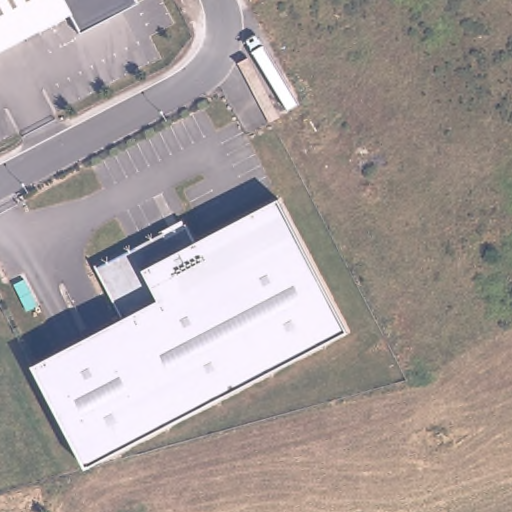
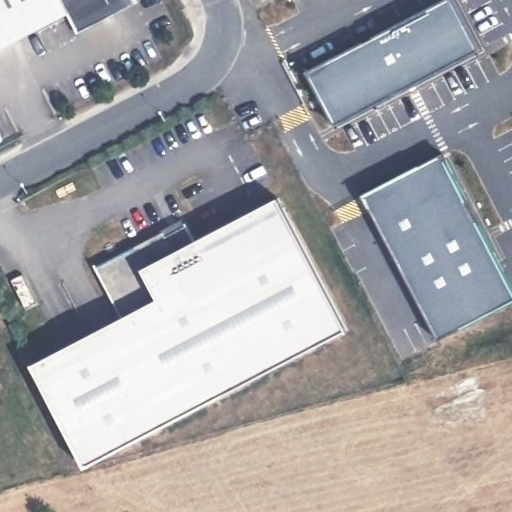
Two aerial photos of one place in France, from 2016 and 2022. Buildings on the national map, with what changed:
unchanged [(136,4),(78,34),(68,14),(37,30),(0,49),(0,0),(135,0),(136,4)]
new [(446,0),(452,0),(479,50),(335,125),(307,72),(446,0)]
new [(512,288),(512,303),(438,341),(362,195),(442,154),(512,288)]
unchanged [(343,326),(345,330),(298,355),(225,393),(86,466),(34,366),(76,343),(123,318),(159,300),(143,270),(224,227),(277,200),(343,326)]

